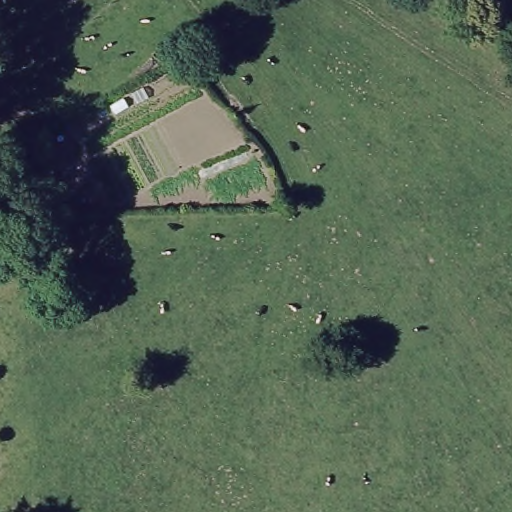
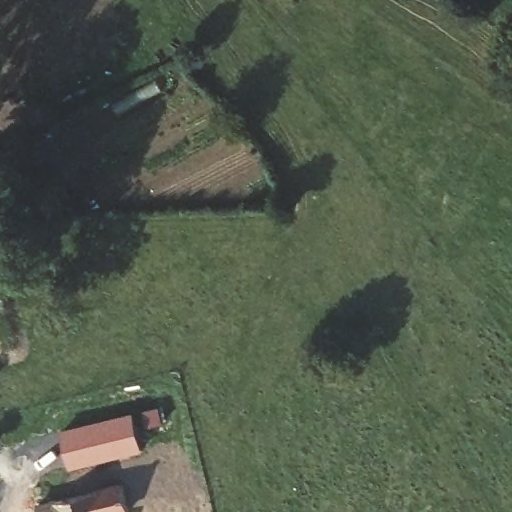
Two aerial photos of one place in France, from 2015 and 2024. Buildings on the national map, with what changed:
new [(62,430),(134,412),(143,450),(70,468),(62,430)]
new [(123,482),(129,512),(39,512),(38,503),(123,482)]

